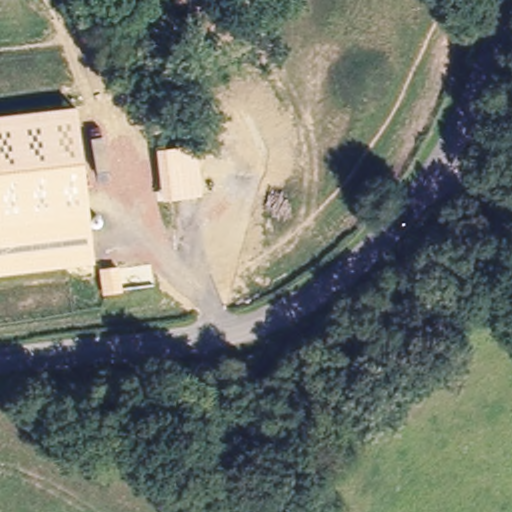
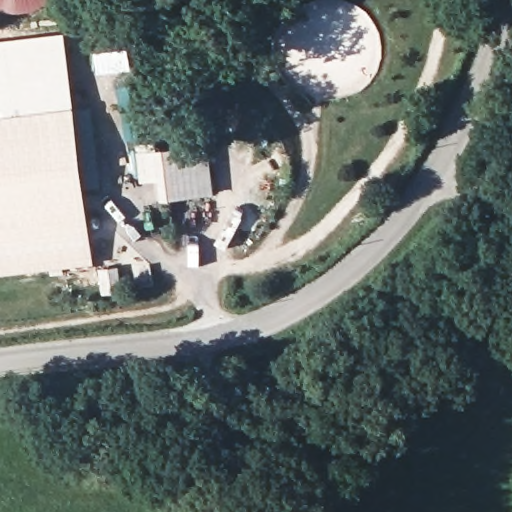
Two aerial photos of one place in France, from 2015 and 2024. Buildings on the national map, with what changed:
new [(30,10),(21,12),(11,12),(1,10),(0,10),(0,0),(47,0),(40,6),(30,10)]
new [(75,106),(74,106),(0,116),(0,39),(65,31),(75,106)]
new [(129,45),(132,68),(97,72),(94,50),(129,45)]
unchanged [(95,261),(0,272),(0,116),(74,106),(95,261)]
unchanged [(196,145),(203,196),(160,200),(155,149),(196,145)]

